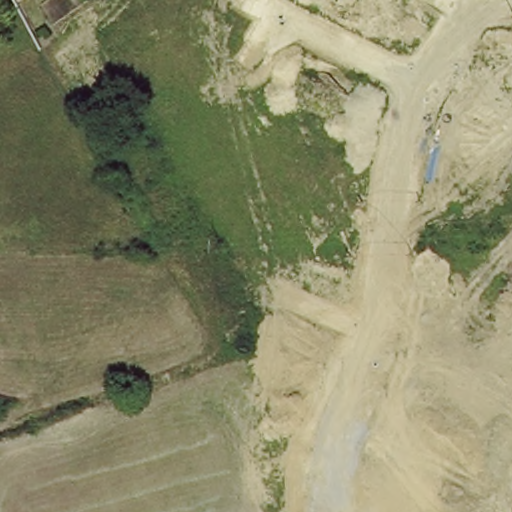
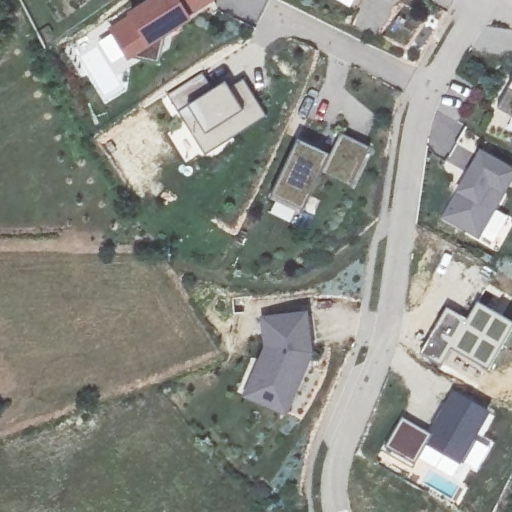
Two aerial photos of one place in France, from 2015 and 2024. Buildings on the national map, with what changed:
new [(193,21),(166,37),(159,64),(133,58),(129,61),(109,28),(129,14),(150,0),(216,0),(191,18),(193,21)]
unchanged [(342,2),(343,0),(362,0),(356,10),(342,2)]
new [(216,160),(213,157),(178,99),(214,76),(224,94),(237,86),(241,92),(255,84),(276,119),(278,122),(216,160)]
new [(511,89),(512,86),(512,115),(500,107),(511,89)]
unchanged [(369,148),(352,185),(324,170),(303,214),(272,199),(300,142),(330,156),(342,135),(369,148)]
new [(507,195),(482,241),(443,219),(457,191),(482,150),(512,167),(512,185),(507,195)]
new [(480,302),(512,324),(512,330),(488,370),(454,347),(443,366),(423,353),(450,309),(467,321),(480,302)]
new [(309,312),(315,356),(289,416),(244,398),(266,348),(261,315),(309,312)]
new [(429,433),(455,390),(492,412),(463,465),(429,445),(417,464),(388,446),(404,420),(429,433)]

